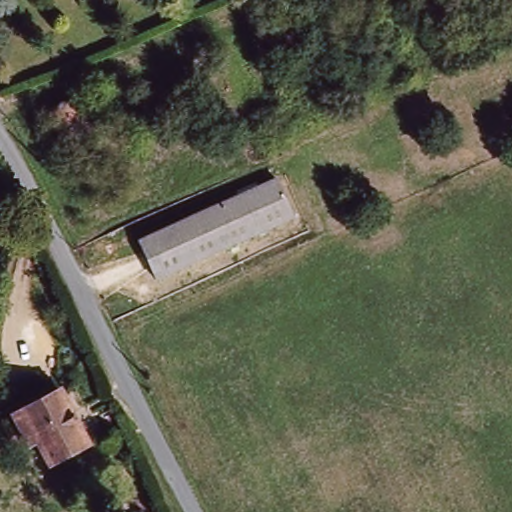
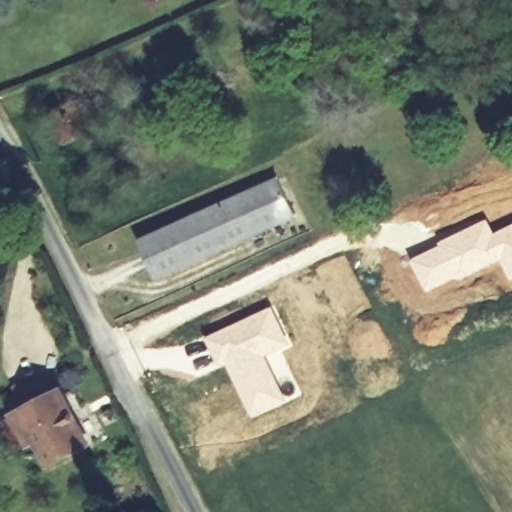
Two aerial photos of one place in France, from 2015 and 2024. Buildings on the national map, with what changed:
unchanged [(74,107),(86,136),(64,145),(52,117),(74,107)]
unchanged [(280,177),(296,214),(229,245),(213,208),(280,177)]
unchanged [(213,208),(229,245),(158,278),(141,241),(213,208)]
new [(445,237),(486,217),(494,231),(512,222),(512,279),(508,281),(498,262),(457,281),(455,278),(426,293),(409,258),(430,248),(445,237)]
new [(271,305),(291,346),(267,357),(288,399),(249,418),(223,362),(216,367),(203,337),(271,305)]
unchanged [(17,415),(65,388),(93,442),(53,463),(43,443),(34,447),(17,415)]

